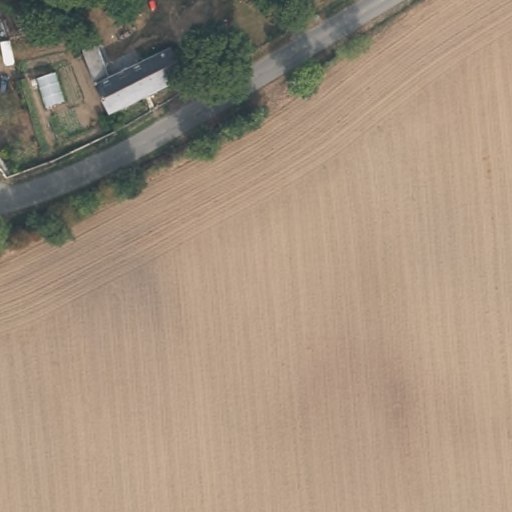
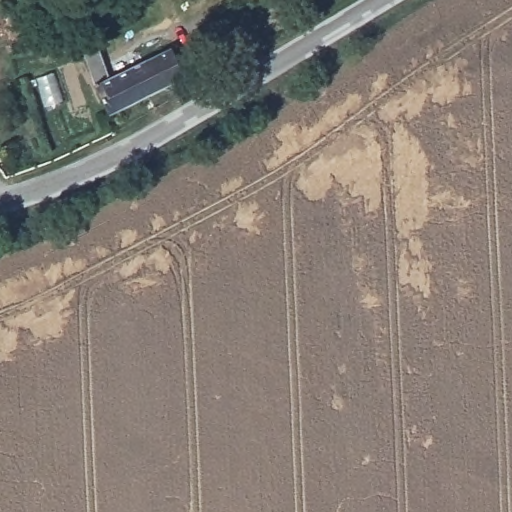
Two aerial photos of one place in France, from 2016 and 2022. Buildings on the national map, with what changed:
unchanged [(101,89),(86,48),(98,44),(110,75),(172,44),(189,72),(109,110),(101,89)]

